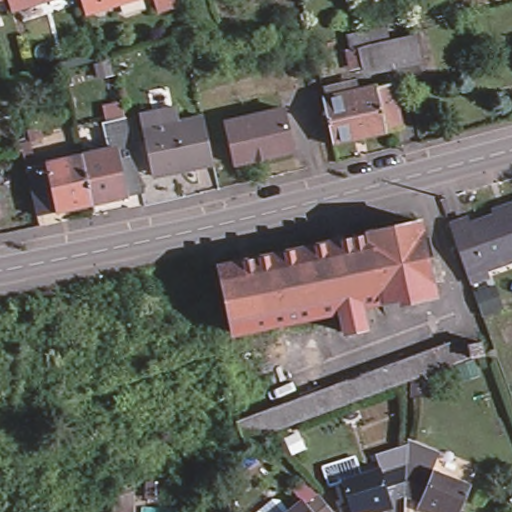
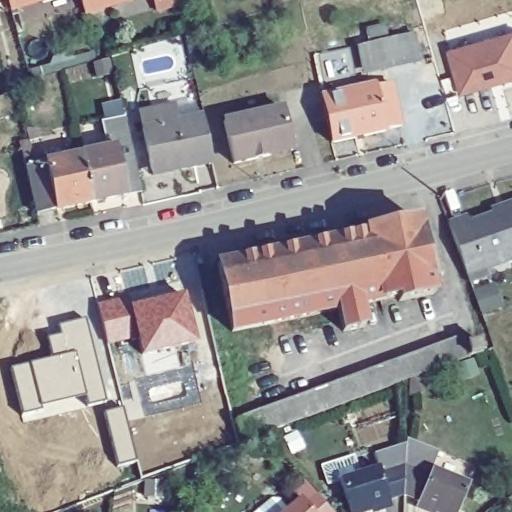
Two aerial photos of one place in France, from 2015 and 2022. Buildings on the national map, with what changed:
unchanged [(12,10),(10,0),(49,0),(12,10)]
unchanged [(87,14),(83,0),(134,0),(87,14)]
unchanged [(180,5),(162,10),(159,0),(178,0),(180,5)]
unchanged [(345,36),(365,30),(384,25),(388,37),(414,30),(422,56),(385,67),(383,60),(365,65),(353,68),(348,49),(345,36)]
new [(512,35),(512,81),(460,96),(446,52),(512,35)]
unchanged [(320,91),(352,84),(355,94),(370,90),(371,91),(387,87),(399,130),(383,134),(383,135),(330,150),(319,103),(322,102),(320,91)]
unchanged [(270,151),(233,160),(223,117),(281,104),(291,140),(292,146),(270,151)]
unchanged [(112,115),(125,111),(132,139),(143,185),(130,189),(95,195),(83,149),(118,141),(112,115)]
unchanged [(157,177),(147,139),(144,125),(173,117),(177,131),(207,125),(216,164),(185,171),(177,172),(157,177)]
unchanged [(23,136),(41,130),(47,156),(58,203),(42,206),(28,157),(23,136)]
unchanged [(83,149),(95,195),(58,203),(47,156),(83,149)]
unchanged [(483,262),(485,269),(467,275),(447,215),(464,209),(467,216),(503,204),(502,199),(512,196),(512,253),(483,262)]
unchanged [(428,293),(395,301),(393,296),(356,303),(360,323),(339,327),(335,307),(270,320),(275,350),(257,353),(263,381),(241,385),(213,262),(360,232),(360,229),(411,219),(428,293)]
new [(129,296),(131,303),(187,290),(200,340),(143,352),(141,337),(108,343),(98,303),(129,296)]
new [(86,318),(107,400),(88,404),(86,394),(40,404),(42,407),(23,411),(12,366),(53,357),(50,335),(63,333),(60,323),(86,318)]
unchanged [(258,405),(268,401),(280,397),(293,392),(303,389),(315,385),(326,381),(337,376),(348,373),(360,369),(370,365),(380,361),(392,357),(404,353),(416,349),(427,345),(437,341),(448,338),(460,333),(462,340),(476,335),(482,350),(468,355),(456,359),(446,362),(435,366),(424,370),(412,375),(408,376),(400,380),(388,383),(379,387),(368,391),(356,395),(345,400),(334,403),(323,407),(311,412),(301,415),(290,420),(277,425),(271,426),(266,428),(265,427),(257,430),(255,430),(245,433),(237,412),(247,408),(252,407),(258,405)]
unchanged [(423,372),(428,385),(410,392),(410,377),(423,372)]
new [(125,407),(137,460),(118,464),(106,411),(125,407)]
unchanged [(418,501),(408,497),(406,497),(390,502),(391,506),(371,512),(352,512),(341,479),(378,468),(373,453),(407,443),(407,437),(438,450),(431,469),(469,485),(458,512),(435,512),(417,505),(418,501)]
unchanged [(274,512),(292,495),(296,499),(305,491),(324,511),(323,512),(274,512)]

